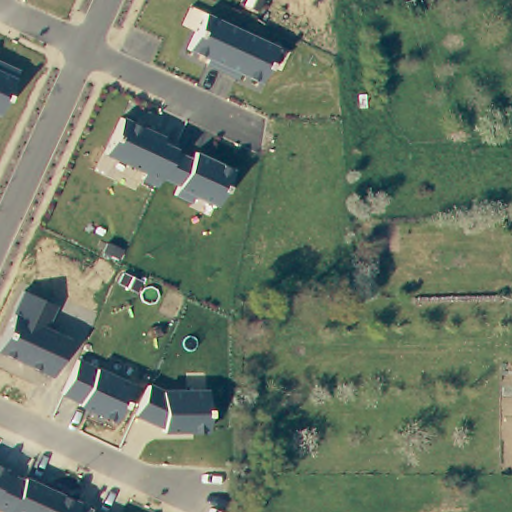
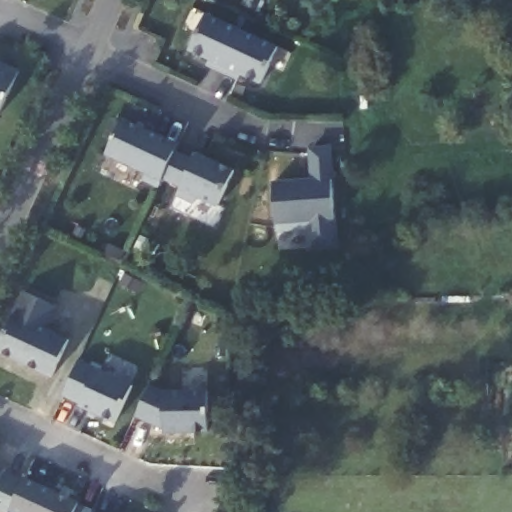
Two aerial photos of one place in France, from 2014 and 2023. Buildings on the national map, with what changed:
unchanged [(205,15),(278,48),(262,84),(240,74),(237,81),(205,66),(209,59),(189,50),(205,15)]
unchanged [(18,71),(0,110),(0,63),(18,71)]
unchanged [(162,135),(160,140),(177,149),(193,157),(195,152),(235,170),(217,206),(194,196),(190,204),(173,196),(179,187),(161,179),(156,188),(142,182),(146,173),(106,155),(124,119),(162,135)]
new [(308,180),(307,146),(333,145),(340,250),(306,251),(305,231),(276,234),(272,182),(308,180)]
unchanged [(21,292),(57,308),(46,330),(68,340),(49,378),(0,356),(0,340),(21,292)]
unchanged [(132,385),(115,423),(78,407),(80,402),(62,394),(77,360),(132,385)]
unchanged [(150,386),(164,392),(209,390),(210,433),(162,433),(162,427),(136,416),(150,386)]
unchanged [(73,512),(2,512),(0,511),(0,466),(79,500),(73,512)]

